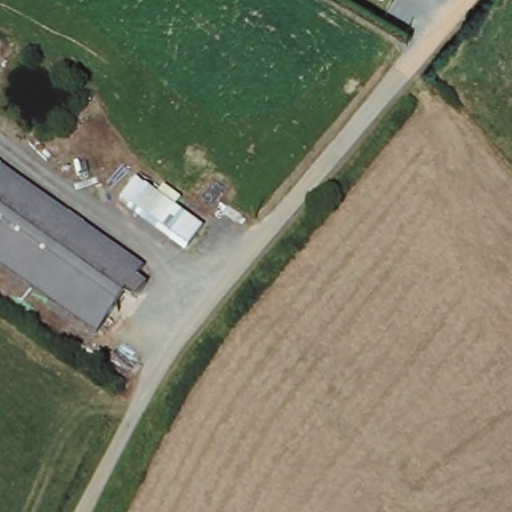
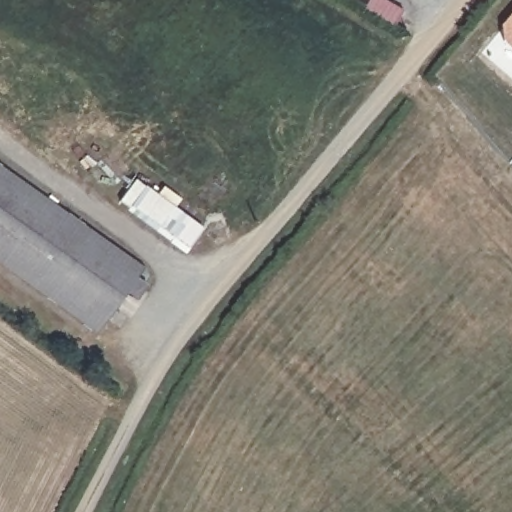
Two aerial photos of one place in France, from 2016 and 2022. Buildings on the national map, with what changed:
new [(505,42),(502,27),(512,17),(512,48),(505,42)]
unchanged [(152,286),(142,301),(130,294),(101,335),(0,264),(0,162),(61,205),(149,266),(141,278),(152,286)]
unchanged [(182,244),(125,201),(140,180),(198,221),(182,244)]

